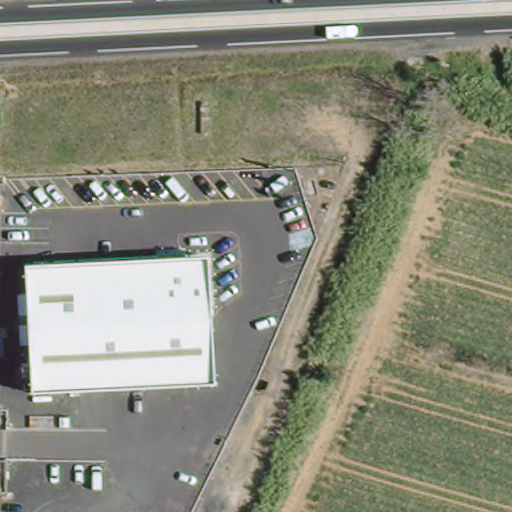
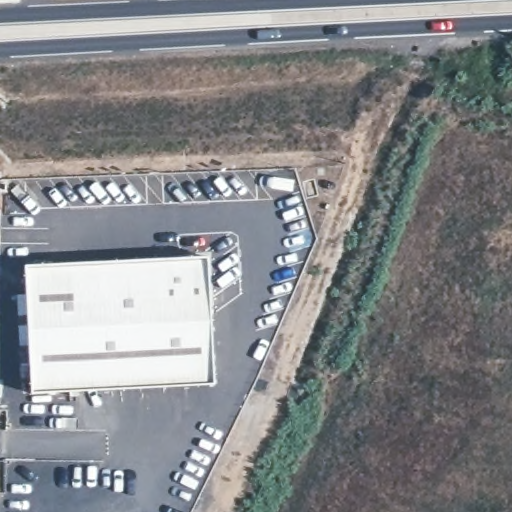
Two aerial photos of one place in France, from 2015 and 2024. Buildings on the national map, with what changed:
unchanged [(202,259),(209,387),(29,396),(21,265),(202,259)]

